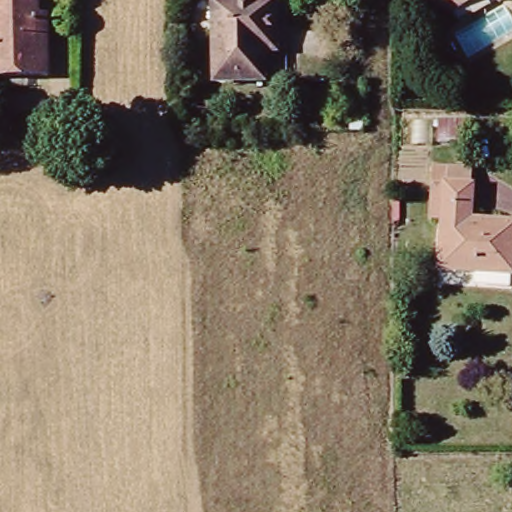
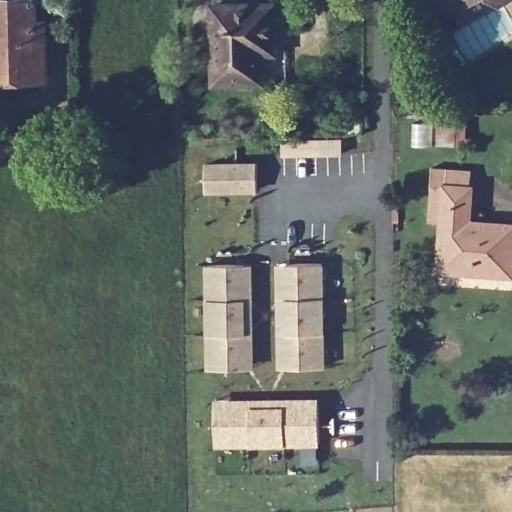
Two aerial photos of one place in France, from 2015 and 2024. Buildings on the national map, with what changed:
unchanged [(0,81),(0,1),(31,0),(32,18),(41,18),(41,40),(42,80),(0,81)]
unchanged [(450,12),(429,0),(470,0),(450,12)]
unchanged [(491,0),(505,0),(499,4),(491,0)]
unchanged [(262,82),(212,82),(213,5),(274,5),(275,52),(262,52),(262,82)]
new [(254,162),(255,188),(204,189),(203,163),(254,162)]
unchanged [(507,270),(435,266),(440,183),(429,182),(430,166),(465,168),(464,218),(510,221),(507,270)]
new [(321,263),(322,368),(285,368),(278,368),(276,264),(284,263),(321,263)]
new [(248,264),(250,368),(243,369),(206,369),(204,265),(241,265),(248,264)]
new [(319,396),(319,468),(301,468),(301,446),(216,446),(215,398),(319,396)]

